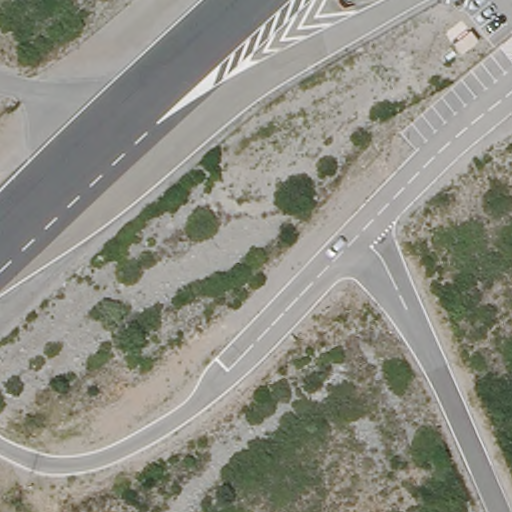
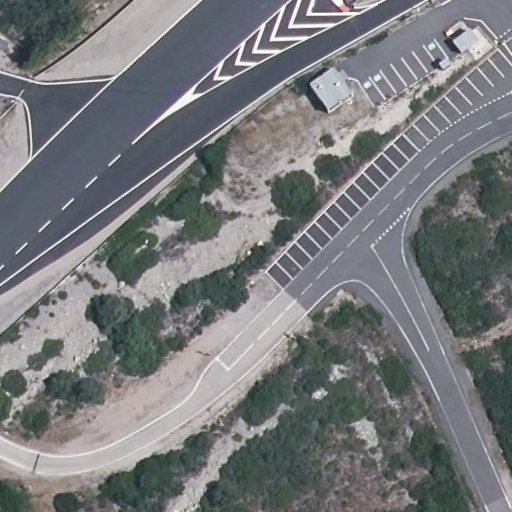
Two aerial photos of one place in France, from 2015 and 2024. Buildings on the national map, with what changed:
unchanged [(469,32),(477,44),(462,56),(452,44),(469,32)]
new [(353,97),(329,113),(312,88),(335,73),(353,97)]

